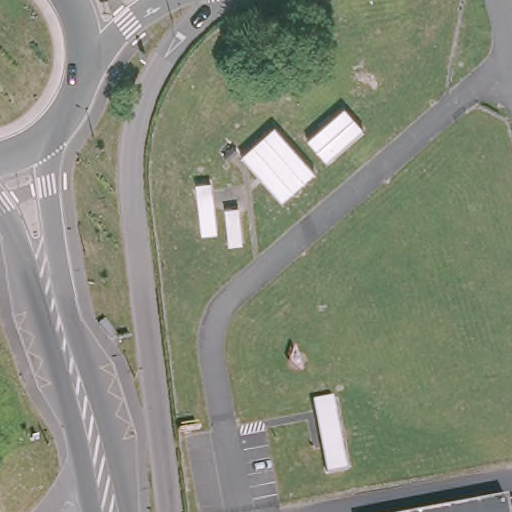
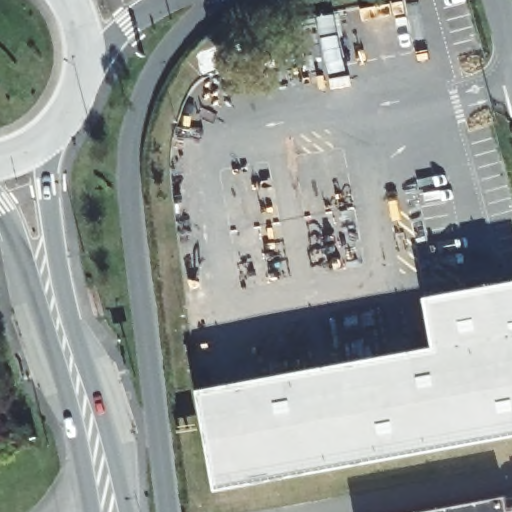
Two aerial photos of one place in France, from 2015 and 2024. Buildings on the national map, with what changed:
demolished [(240,154),(275,124),(315,171),(282,202),(240,154)]
new [(438,345),(429,295),(479,286),(479,283),(481,283),(482,287),(502,283),(502,279),(505,279),(505,281),(512,280),(512,434),(285,477),(266,377),(438,345)]
new [(221,489),(202,389),(266,377),(285,477),(221,489)]
demolished [(314,398),(333,394),(347,468),(327,470),(314,398)]
unchanged [(505,494),(507,500),(512,498),(512,512),(407,512),(505,494)]

